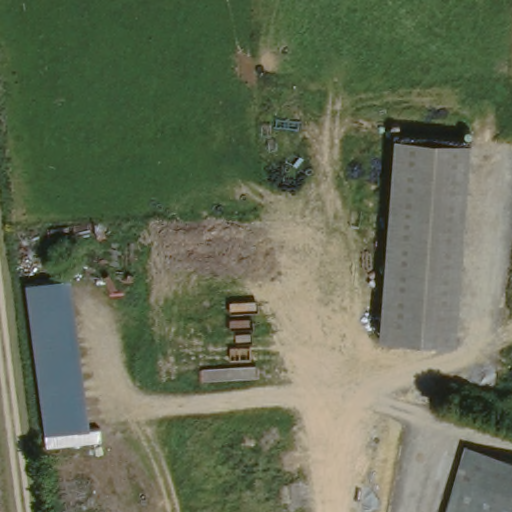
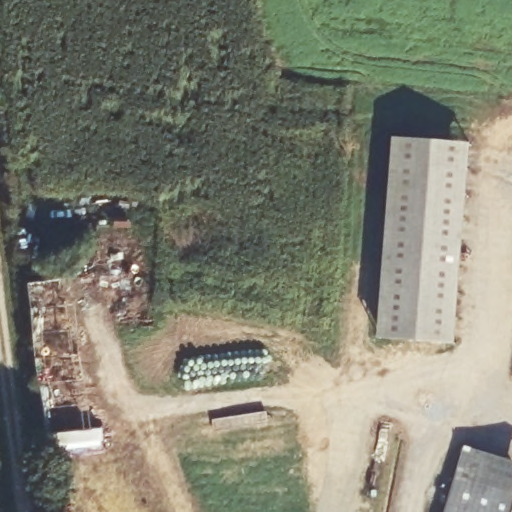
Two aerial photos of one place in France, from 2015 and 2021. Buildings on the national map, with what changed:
unchanged [(469,145),(454,347),(377,341),(391,141),(469,145)]
unchanged [(82,433),(39,438),(20,286),(66,282),(82,433)]
unchanged [(454,460),(457,450),(512,468),(512,497),(459,480),(449,478),(454,460)]
unchanged [(449,478),(459,480),(512,497),(512,512),(440,512),(449,478)]

